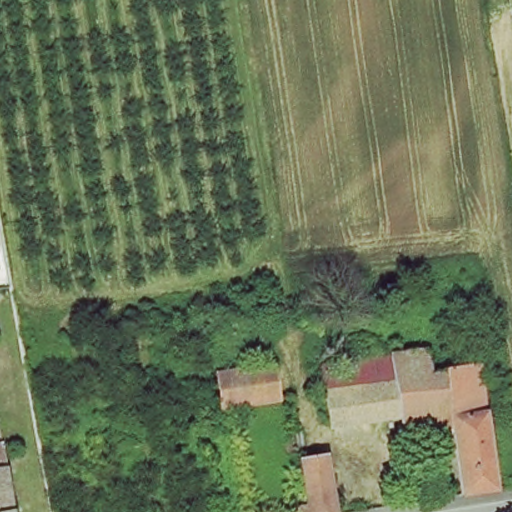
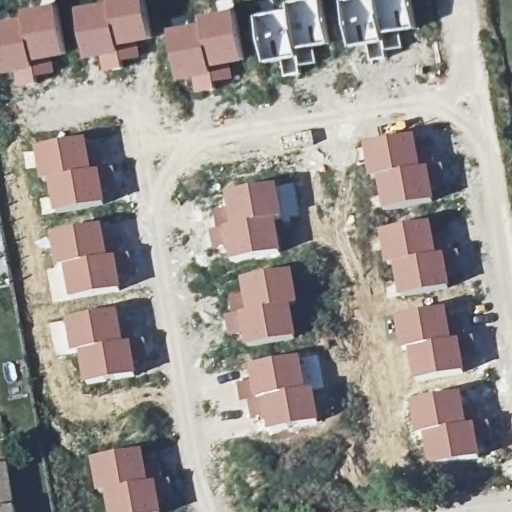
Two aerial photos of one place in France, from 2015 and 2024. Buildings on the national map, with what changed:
new [(111,1),(111,0),(146,0),(153,39),(140,42),(143,57),(123,61),(124,67),(103,71),(100,56),(85,59),(76,8),(111,1)]
new [(290,8),(288,0),(290,0),(324,0),(331,46),(316,49),(319,64),(301,67),(301,75),(284,78),(281,61),(265,65),(255,15),(290,8)]
new [(420,28),(402,32),(406,49),(388,54),(388,57),(369,61),(366,46),(350,50),(341,0),(414,0),(420,28)]
new [(59,4),(68,54),(54,57),(56,73),(38,77),(34,62),(25,17),(25,10),(59,4)]
new [(204,22),(203,17),(237,10),(246,61),(233,64),(236,79),(216,83),(217,88),(195,92),(193,79),(179,81),(168,29),(204,22)]
new [(34,62),(38,77),(38,82),(16,86),(13,72),(2,75),(0,64),(0,22),(25,17),(34,62)]
new [(415,133),(422,167),(374,178),(369,179),(363,145),(415,133)]
new [(86,138),(93,170),(47,181),(41,182),(32,149),(86,138)]
new [(422,167),(428,165),(435,201),(380,211),(374,178),(422,167)]
new [(93,170),(99,170),(105,204),(52,212),(47,181),(93,170)]
new [(228,207),(226,193),(279,184),(285,218),(277,220),(215,227),(213,210),(228,207)]
new [(215,227),(277,220),(281,252),(225,261),(223,248),(211,250),(207,229),(215,227)]
new [(430,220),(437,252),(390,263),(385,264),(379,230),(430,220)]
new [(102,225),(108,257),(60,268),(56,268),(50,234),(102,225)]
new [(437,252),(444,251),(450,286),(397,295),(390,263),(437,252)]
new [(108,257),(115,255),(120,290),(66,299),(60,268),(108,257)]
new [(227,311),(224,294),(241,291),(239,279),(291,268),(298,304),(291,305),(296,338),(242,347),(240,335),(226,337),(221,313),(227,311)]
new [(446,307),(452,338),(405,349),(401,350),(395,316),(446,307)]
new [(118,310),(123,342),(77,352),(55,355),(49,322),(118,310)]
new [(452,338),(459,337),(464,371),(412,380),(405,349),(452,338)]
new [(123,342),(131,341),(135,375),(83,384),(77,352),(123,342)]
demolished [(452,408),(403,415),(393,352),(428,347),(431,376),(449,375),(449,370),(479,366),(481,380),(486,378),(491,379),(494,398),(489,400),(484,401),(495,490),(464,496),(453,426),(452,408)]
new [(250,378),(248,366),(301,356),(308,389),(253,400),(247,402),(240,403),(235,381),(250,378)]
new [(253,400),(308,389),(313,388),(319,422),(264,433),(261,417),(251,419),(247,402),(253,400)]
new [(460,390),(467,423),(420,435),(410,401),(460,390)]
new [(467,423),(474,422),(480,458),(428,468),(420,435),(467,423)]
unchanged [(6,448),(17,512),(0,512),(0,444),(5,443),(6,448)]
demolished [(311,491),(305,450),(330,446),(339,506),(303,512),(297,512),(295,495),(311,491)]
new [(149,481),(156,480),(161,512),(105,512),(101,491),(95,492),(89,458),(143,448),(149,481)]

